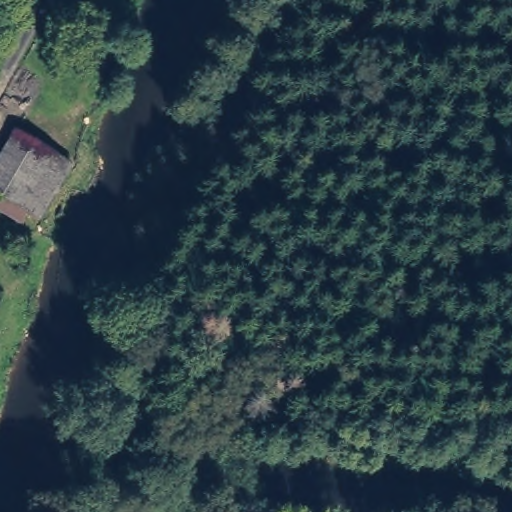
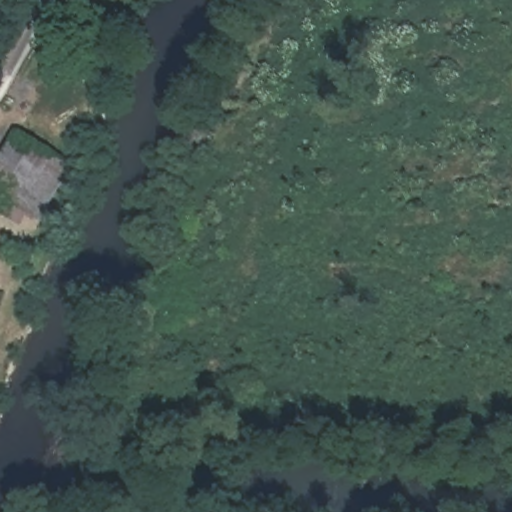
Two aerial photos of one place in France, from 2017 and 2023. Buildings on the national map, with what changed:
unchanged [(38,219),(0,196),(0,155),(14,130),(70,164),(65,174),(38,219)]

